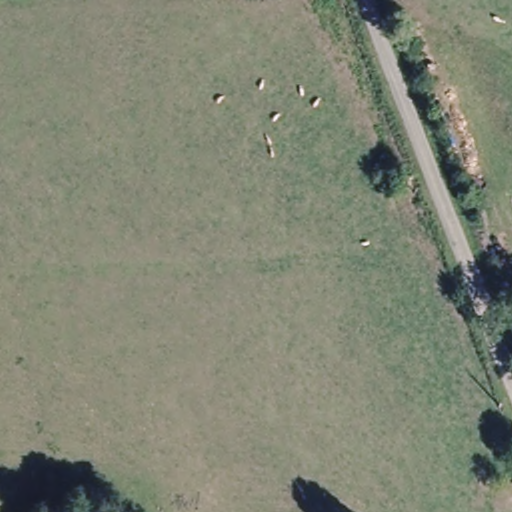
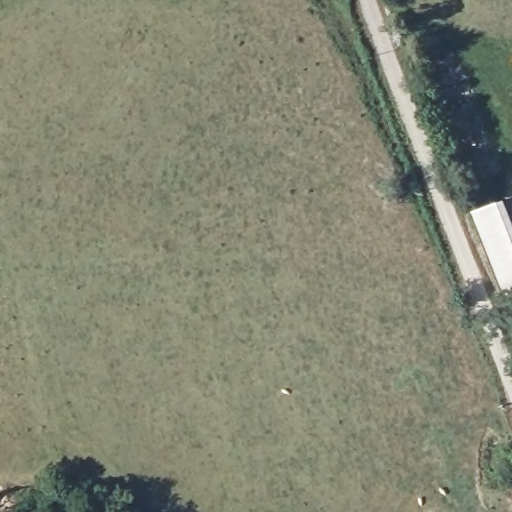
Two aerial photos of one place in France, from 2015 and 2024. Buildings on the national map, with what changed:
new [(512,230),(512,293),(505,295),(473,210),(500,200),(512,230)]

